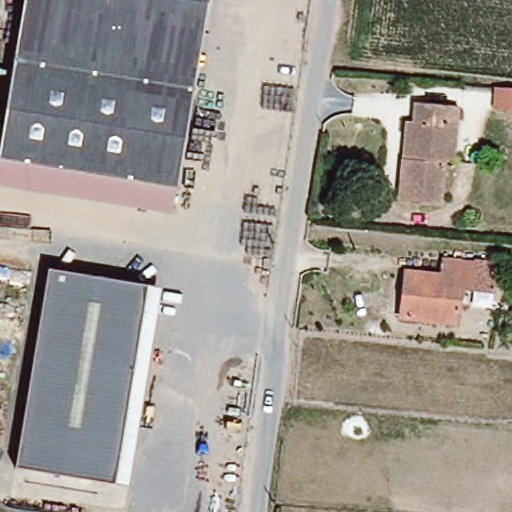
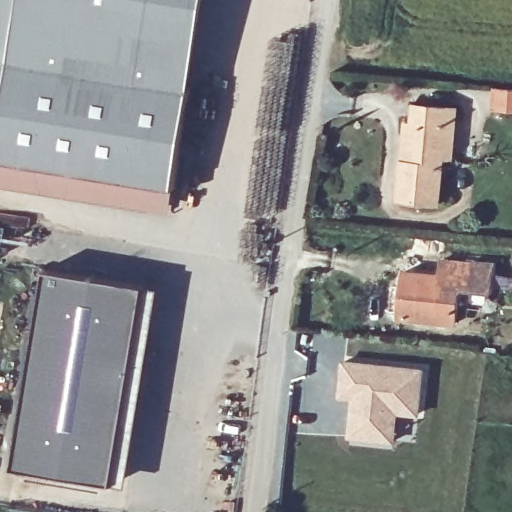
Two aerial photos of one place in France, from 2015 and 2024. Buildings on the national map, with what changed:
unchanged [(191,83),(178,185),(0,157),(0,0),(151,0),(141,77),(191,83)]
unchanged [(191,83),(141,77),(151,0),(201,0),(191,83)]
new [(498,85),(512,87),(512,107),(496,105),(498,85)]
unchanged [(450,156),(442,156),(439,203),(409,202),(412,160),(401,160),(405,110),(450,114),(450,156)]
unchanged [(173,214),(0,185),(0,157),(178,185),(173,214)]
unchanged [(469,260),(465,294),(454,294),(451,323),(398,318),(403,273),(437,278),(439,257),(469,260)]
unchanged [(152,289),(126,489),(26,474),(54,275),(152,289)]
new [(380,437),(352,433),(356,394),(350,393),(343,393),(345,378),(347,358),(426,367),(420,412),(399,409),(396,438),(380,437)]

